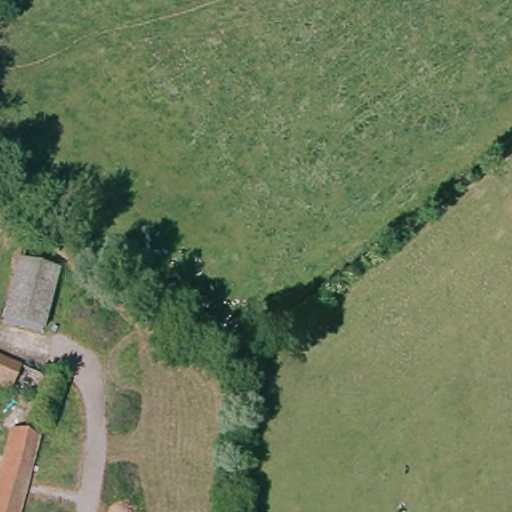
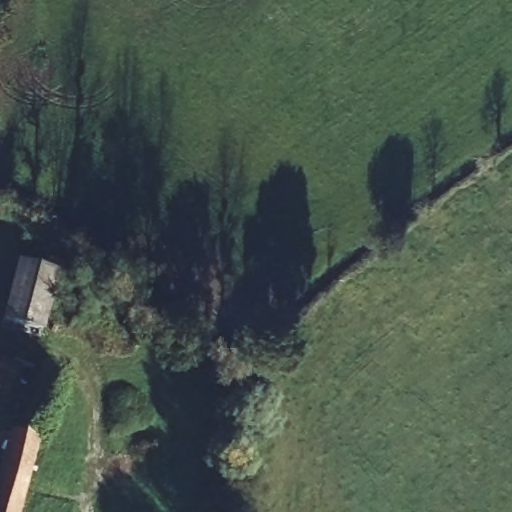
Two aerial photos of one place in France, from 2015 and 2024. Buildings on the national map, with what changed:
unchanged [(19,270),(56,284),(38,330),(3,316),(19,270)]
unchanged [(18,372),(10,391),(0,387),(0,363),(18,372)]
unchanged [(45,437),(19,512),(0,512),(0,490),(22,429),(45,437)]

